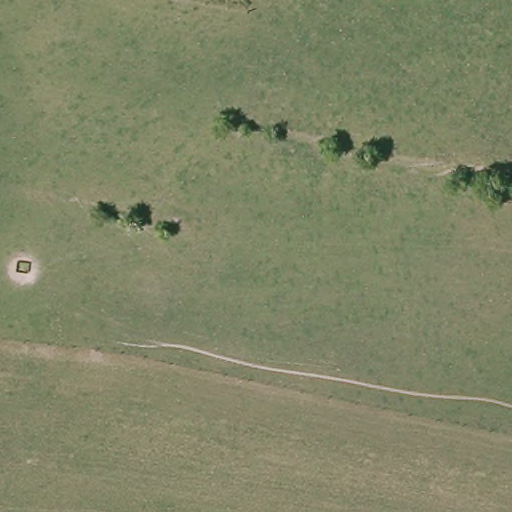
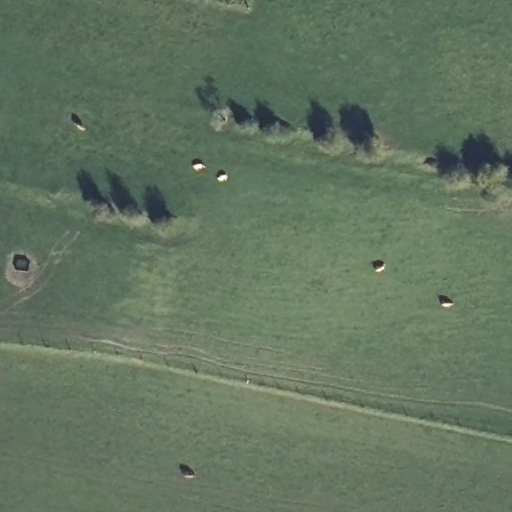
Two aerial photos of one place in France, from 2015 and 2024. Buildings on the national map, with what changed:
unchanged [(30,274),(16,275),(15,261),(30,261),(30,274)]

